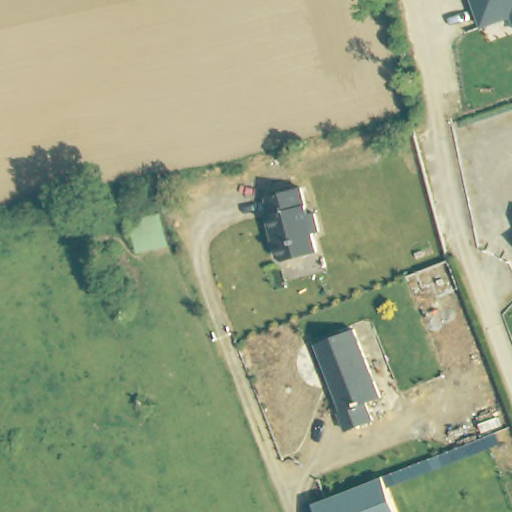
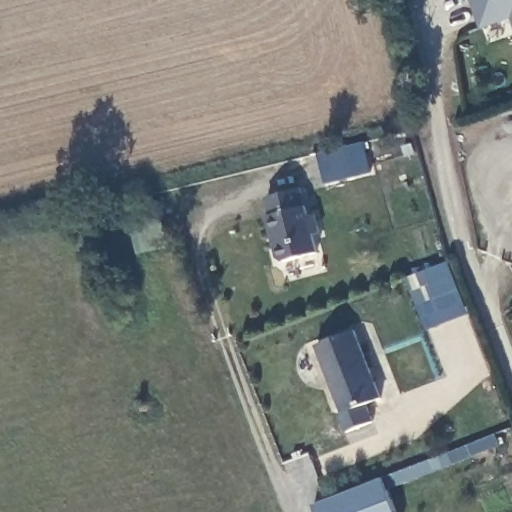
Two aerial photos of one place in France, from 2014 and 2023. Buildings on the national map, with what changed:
unchanged [(473,0),(512,0),(512,18),(483,27),(473,0)]
unchanged [(314,217),(320,216),(325,233),(319,236),(324,254),(291,262),(285,260),(282,249),(284,245),(282,232),(278,234),(273,217),(277,216),(271,198),(306,190),(314,217)]
unchanged [(136,257),(130,224),(165,216),(173,250),(136,257)]
new [(407,277),(449,261),(469,313),(427,328),(407,277)]
unchanged [(379,399),(364,406),(372,423),(345,433),(338,416),(342,414),(314,347),(352,332),(379,399)]
unchanged [(403,512),(319,512),(317,505),(388,476),(403,512)]

